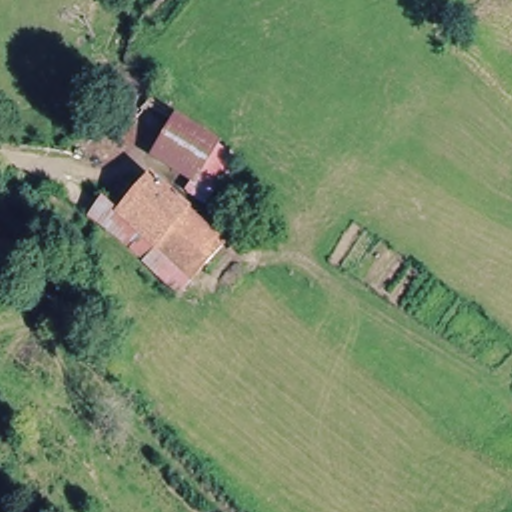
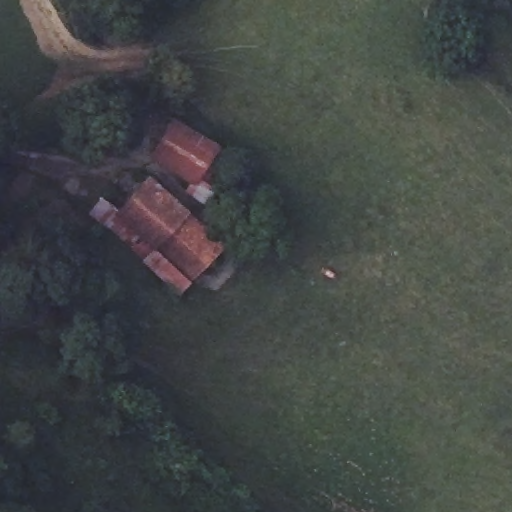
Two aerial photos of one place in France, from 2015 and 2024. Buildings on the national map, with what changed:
unchanged [(204,180),(163,149),(182,114),(227,146),(242,157),(217,190),(204,180)]
unchanged [(178,262),(164,248),(126,215),(162,178),(236,246),(200,282),(190,273),(176,284),(166,274),(178,262)]

